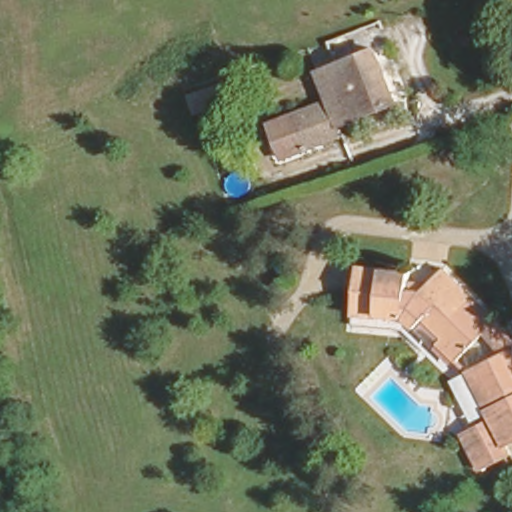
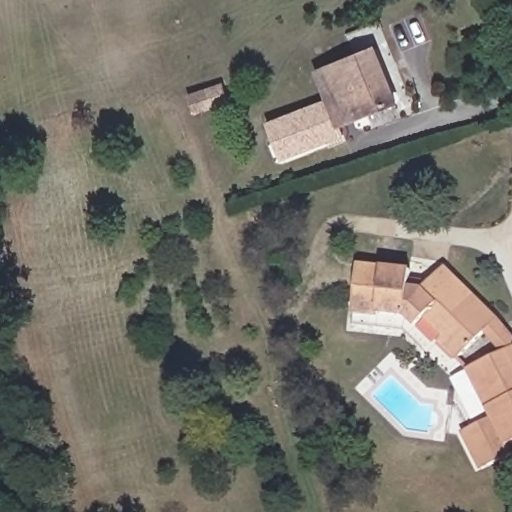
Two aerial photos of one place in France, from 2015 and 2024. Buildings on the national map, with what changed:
unchanged [(340,116),(343,126),(277,151),(264,114),(300,101),(290,72),(374,40),(385,66),(387,70),(396,95),(340,116)]
unchanged [(405,287),(416,289),(437,268),(491,319),(512,344),(512,439),(498,446),(503,457),(471,470),(454,436),(485,421),(463,371),(493,353),(474,335),(451,363),(428,345),(423,349),(409,335),(411,324),(403,319),(374,316),(373,321),(347,316),(353,265),(406,271),(405,287)]

